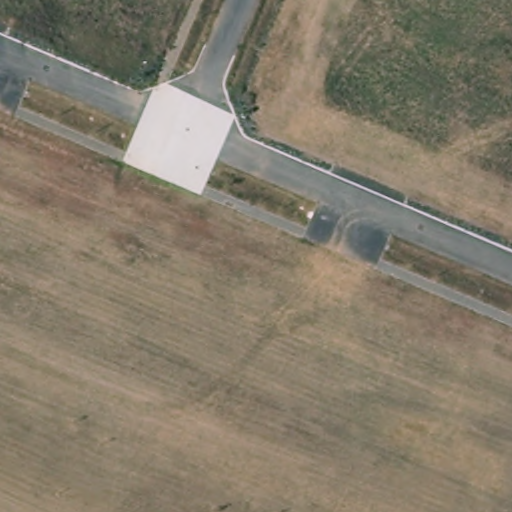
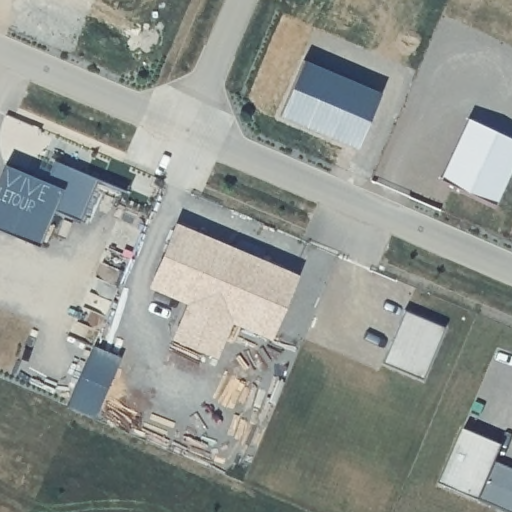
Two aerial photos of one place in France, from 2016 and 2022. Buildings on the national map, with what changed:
new [(468,119),(512,139),(512,169),(496,204),(441,178),(468,119)]
new [(45,181),(54,160),(126,190),(125,192),(97,180),(80,221),(54,210),(39,246),(0,230),(0,176),(5,164),(45,181)]
new [(269,331),(154,280),(176,226),(292,275),(269,331)]
new [(404,309),(444,326),(422,378),(382,361),(404,309)]
new [(510,447),(502,465),(512,469),(512,512),(509,512),(440,483),(463,427),(496,441),(510,447)]

